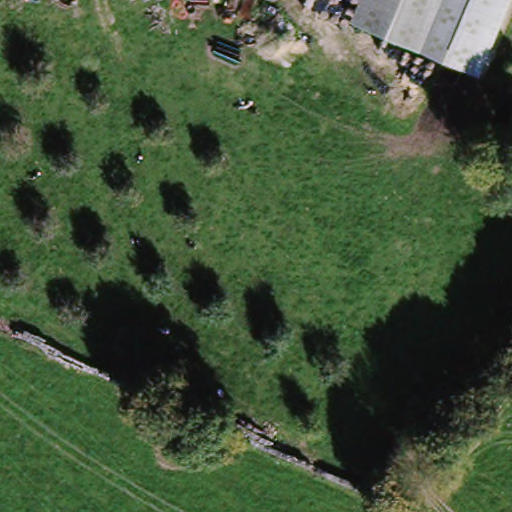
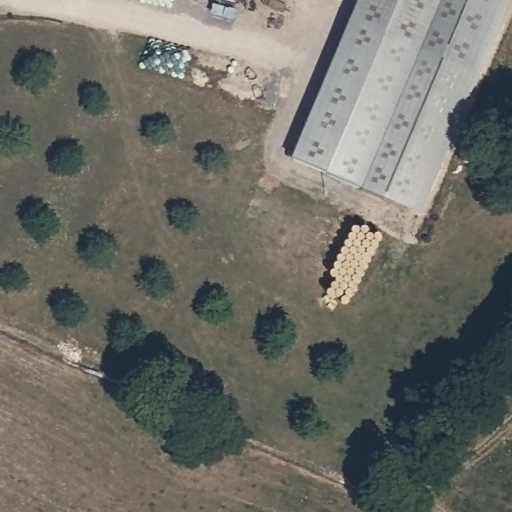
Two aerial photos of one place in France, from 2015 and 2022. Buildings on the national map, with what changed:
unchanged [(352,26),(363,0),(446,0),(423,53),(352,26)]
unchanged [(423,53),(446,0),(512,0),(512,3),(480,77),(423,53)]
new [(423,53),(480,77),(420,214),(292,157),(347,23),(352,26),(423,53)]

